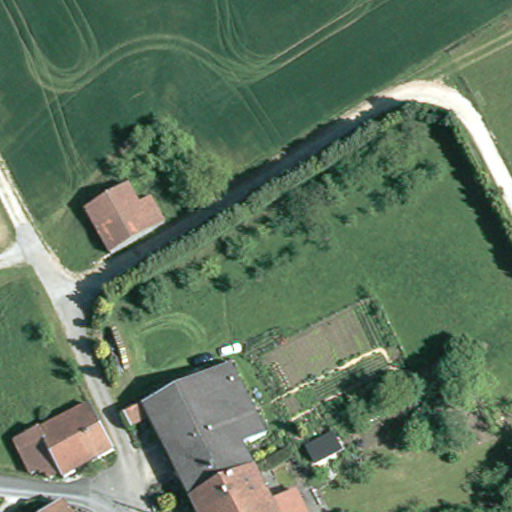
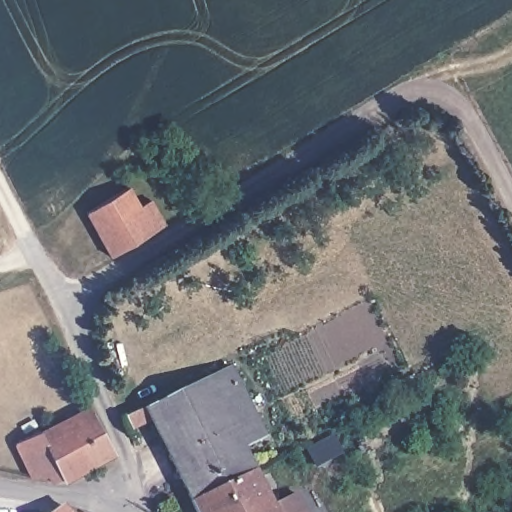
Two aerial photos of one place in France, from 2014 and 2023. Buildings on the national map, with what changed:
unchanged [(173,228),(118,261),(92,216),(134,192),(146,211),(159,204),(173,228)]
unchanged [(214,379),(247,363),(253,375),(244,380),(277,445),(253,457),(259,470),(198,501),(157,421),(137,430),(131,417),(151,409),(159,405),(214,379)]
unchanged [(37,478),(19,449),(46,435),(48,438),(96,410),(122,455),(72,486),(61,484),(53,471),(37,478)]
unchanged [(198,501),(259,470),(280,512),(203,512),(198,501)]
unchanged [(69,512),(65,512),(67,511),(69,512)]

